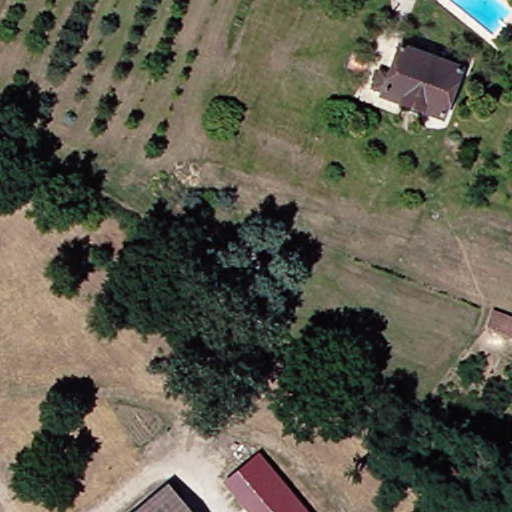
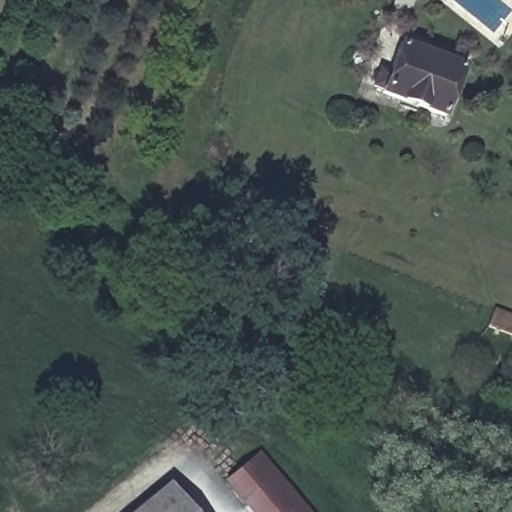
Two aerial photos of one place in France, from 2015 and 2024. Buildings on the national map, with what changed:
unchanged [(457,62),(458,116),(373,112),(374,87),(394,87),(395,60),(457,62)]
unchanged [(491,331),(498,312),(512,317),(512,339),(491,331)]
unchanged [(296,512),(262,512),(236,471),(260,456),(296,512)]
unchanged [(198,512),(157,512),(185,493),(198,512)]

